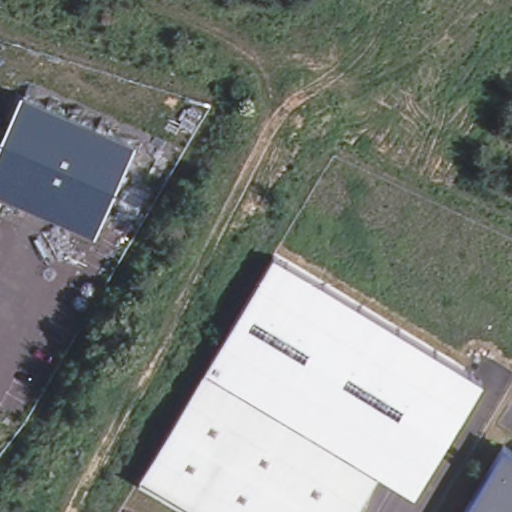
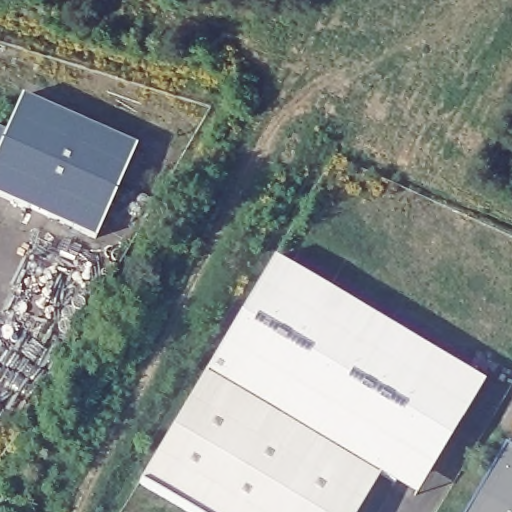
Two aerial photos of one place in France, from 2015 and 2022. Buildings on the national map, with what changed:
unchanged [(135,141),(95,232),(0,191),(0,138),(5,127),(21,90),(135,141)]
unchanged [(0,138),(0,126),(5,127),(0,138)]
unchanged [(380,471),(205,366),(273,253),(483,382),(415,495),(380,471)]
unchanged [(138,477),(203,368),(377,472),(353,512),(197,512),(138,477)]
unchanged [(508,440),(512,443),(512,512),(466,512),(508,440)]

